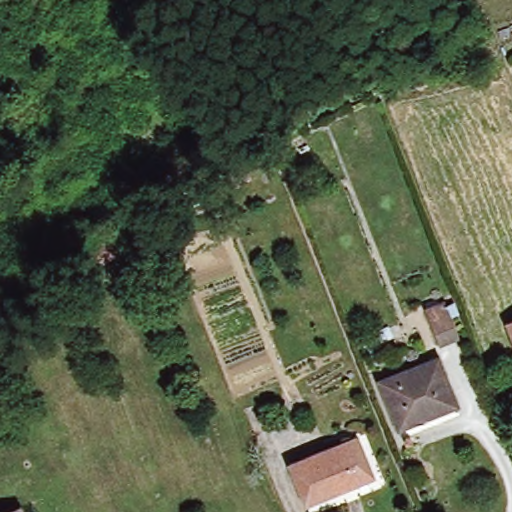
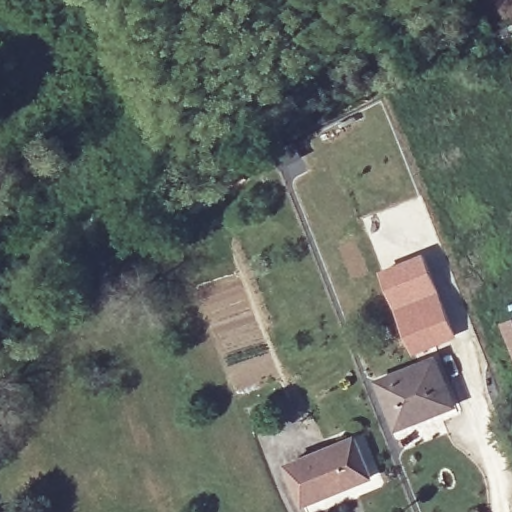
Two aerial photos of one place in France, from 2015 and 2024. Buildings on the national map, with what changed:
new [(423,255),(457,338),(413,354),(382,271),(423,255)]
demolished [(454,333),(438,340),(425,308),(441,301),(454,333)]
unchanged [(506,322),(512,319),(512,337),(506,322)]
unchanged [(455,404),(397,427),(378,379),(436,356),(455,404)]
unchanged [(371,475),(305,502),(288,463),(355,436),(371,475)]
unchanged [(20,512),(4,512),(18,507),(20,512)]

